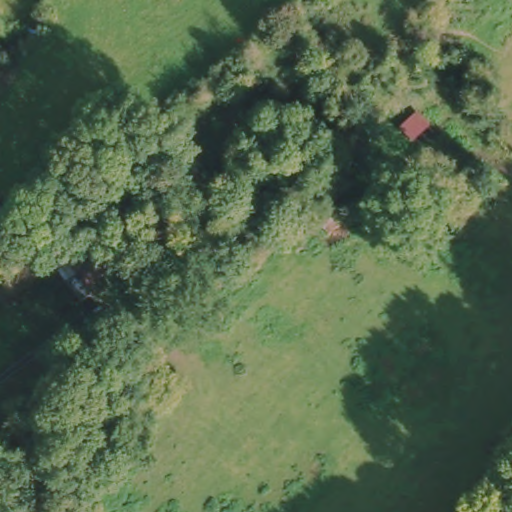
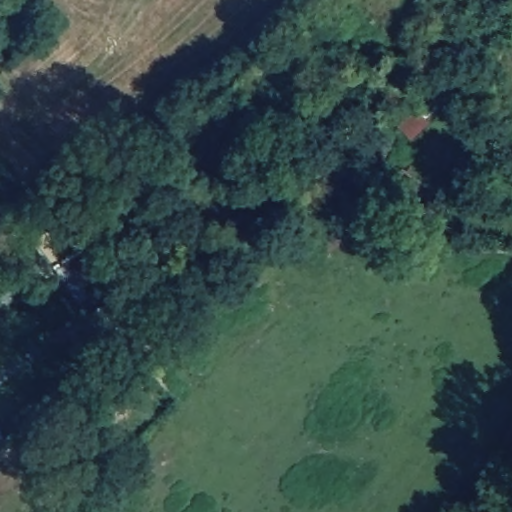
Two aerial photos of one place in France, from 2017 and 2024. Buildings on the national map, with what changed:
unchanged [(17,235),(0,218),(15,204),(31,221),(17,235)]

